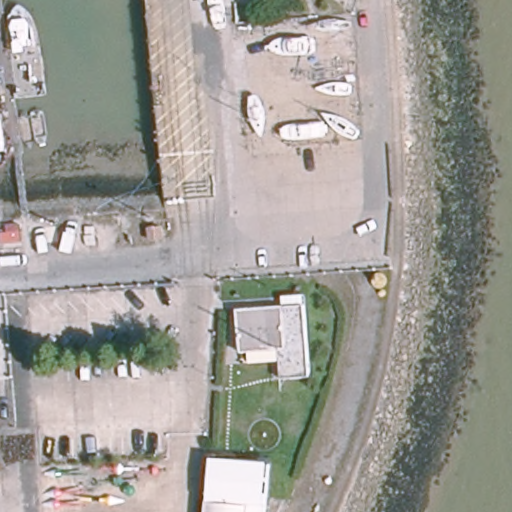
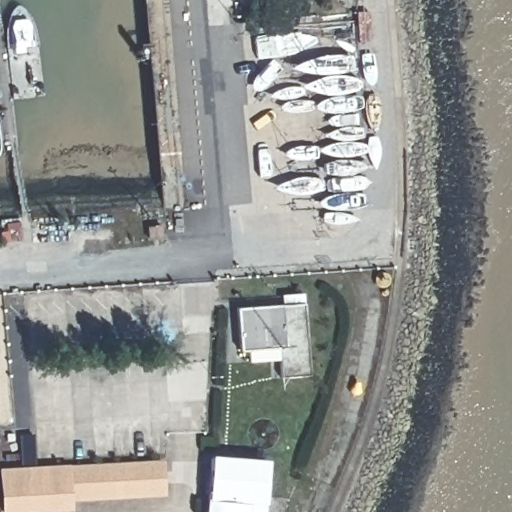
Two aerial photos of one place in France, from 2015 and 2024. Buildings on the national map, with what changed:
unchanged [(28,227),(51,226),(51,239),(29,240),(28,227)]
unchanged [(150,229),(163,228),(164,239),(151,239),(150,229)]
unchanged [(1,232),(18,231),(19,242),(1,243),(1,232)]
unchanged [(235,306),(277,303),(277,294),(299,292),(304,370),(279,371),(278,355),(247,357),(246,348),(238,348),(235,306)]
unchanged [(208,458),(268,463),(265,504),(253,503),(252,512),(203,512),(208,458)]
new [(166,459),(167,498),(74,503),(74,512),(73,512),(5,512),(1,468),(166,459)]
unchanged [(264,512),(252,512),(253,503),(265,504),(264,512)]

